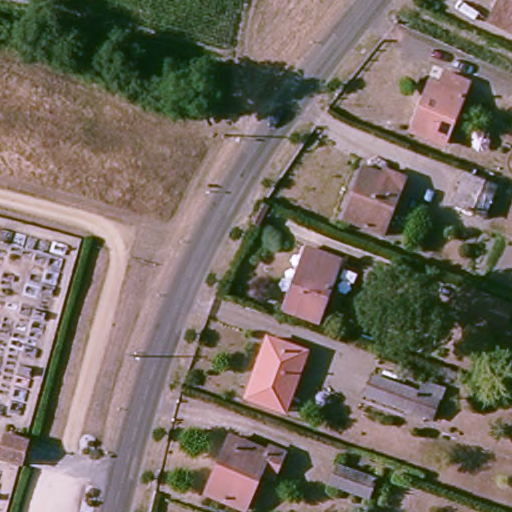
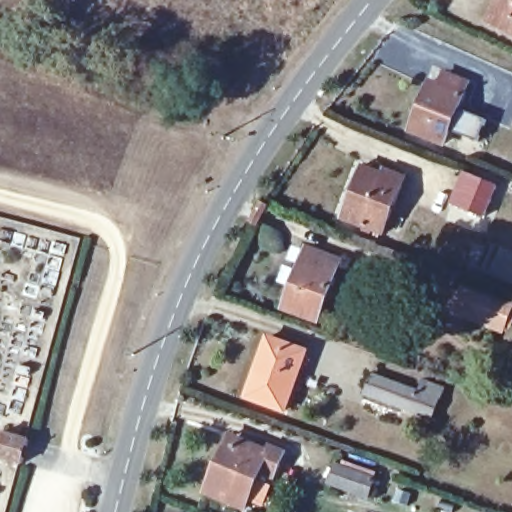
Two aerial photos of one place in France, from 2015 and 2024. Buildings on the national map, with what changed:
unchanged [(492,13),(498,0),(512,0),(512,23),(492,13)]
unchanged [(448,139),(414,125),(433,77),(442,81),(448,67),(472,77),(448,139)]
unchanged [(388,227),(346,209),(367,159),(388,168),(391,162),(413,171),(388,227)]
unchanged [(494,212),(460,199),(472,168),(506,182),(494,212)]
unchanged [(317,257),(322,245),(347,255),(323,311),(287,296),(305,251),(317,257)]
unchanged [(512,296),(512,323),(509,330),(455,312),(466,280),(512,296)]
unchanged [(313,347),(291,406),(256,392),(277,334),(313,347)]
unchanged [(421,383),(422,377),(444,386),(442,397),(453,401),(448,421),(366,391),(375,368),(421,383)]
unchanged [(270,448),(275,437),(292,444),(280,471),(270,466),(252,507),(212,489),(237,433),(270,448)]
unchanged [(385,470),(377,491),(333,475),(341,455),(385,470)]

